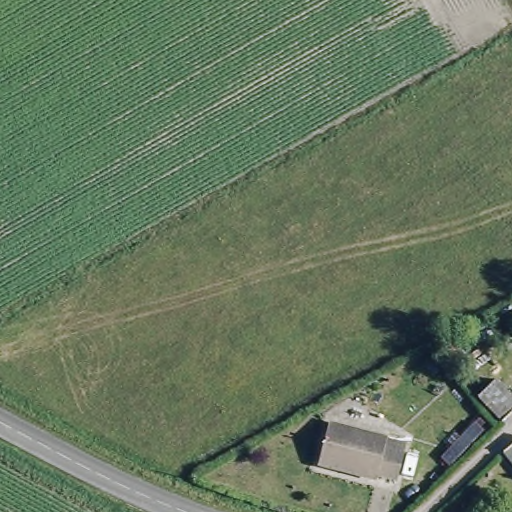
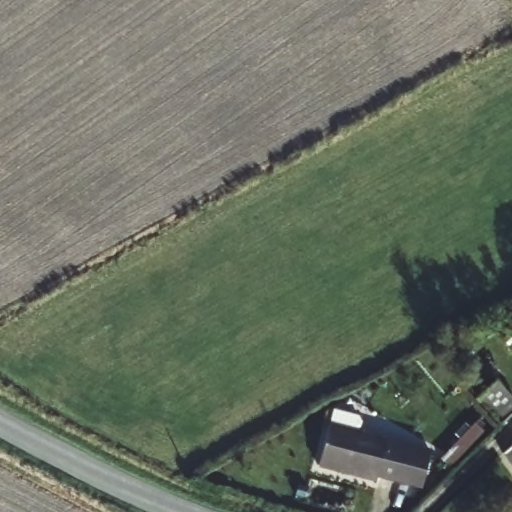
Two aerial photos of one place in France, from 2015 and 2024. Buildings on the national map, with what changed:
unchanged [(406,447),(397,483),(377,478),(375,482),(317,467),(329,426),(406,447)]
unchanged [(512,438),(512,468),(497,448),(512,438)]

